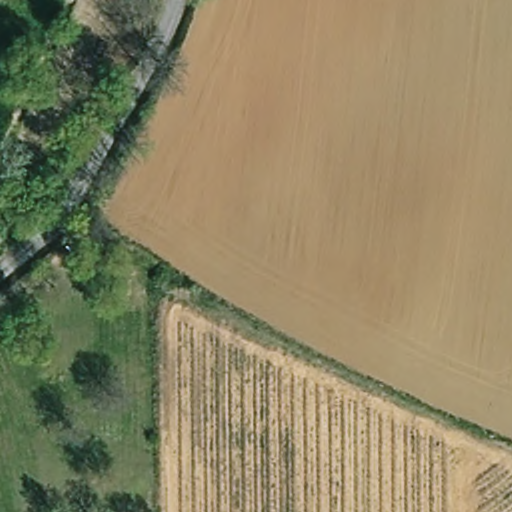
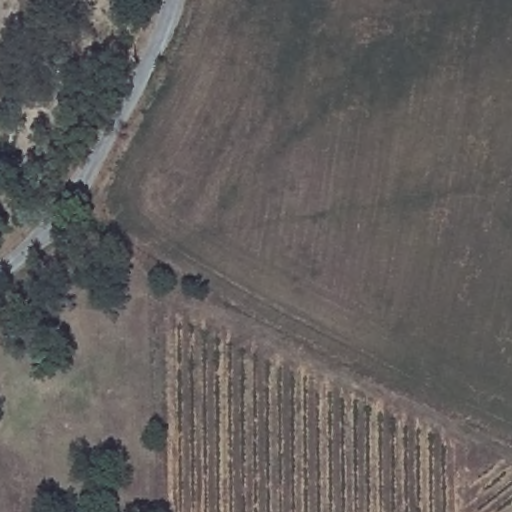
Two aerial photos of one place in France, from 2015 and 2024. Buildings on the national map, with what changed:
[]

